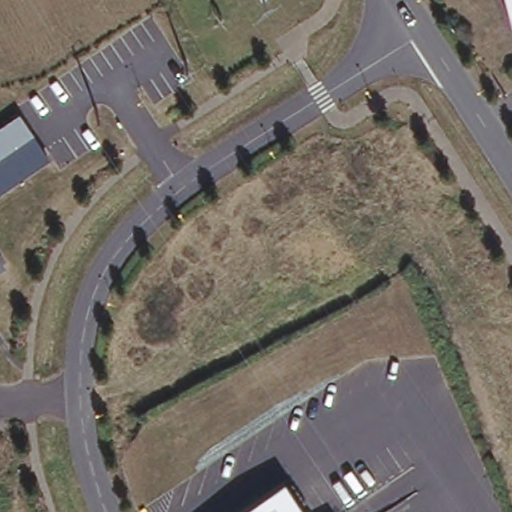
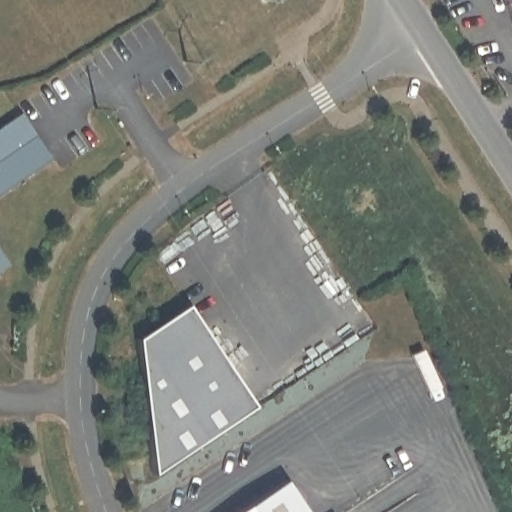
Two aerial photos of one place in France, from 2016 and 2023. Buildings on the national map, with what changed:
unchanged [(512,27),(511,27),(504,0),(512,0),(512,27)]
unchanged [(50,160),(0,193),(0,124),(17,114),(50,160)]
unchanged [(6,265),(0,269),(0,257),(6,265)]
new [(184,318),(247,414),(150,481),(134,347),(184,318)]
unchanged [(236,512),(284,480),(304,512),(236,512)]

